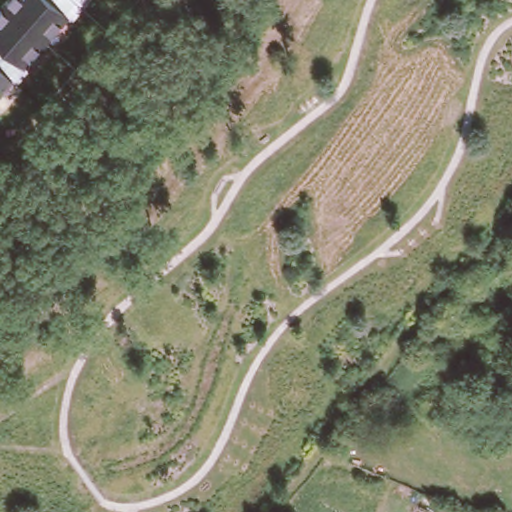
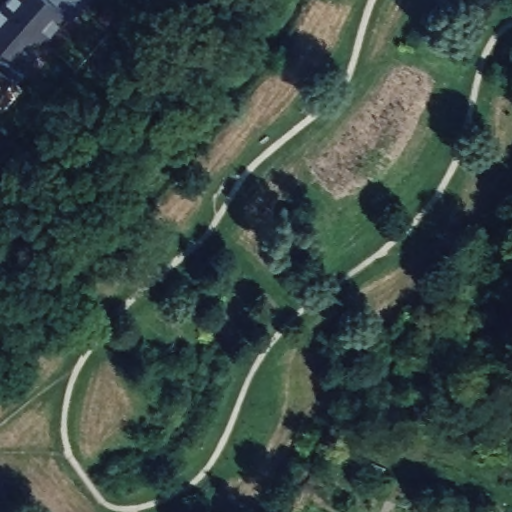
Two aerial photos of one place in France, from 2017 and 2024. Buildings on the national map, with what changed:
unchanged [(68,17),(26,64),(30,66),(12,80),(0,95),(0,7),(6,0),(91,0),(72,20),(68,17)]

